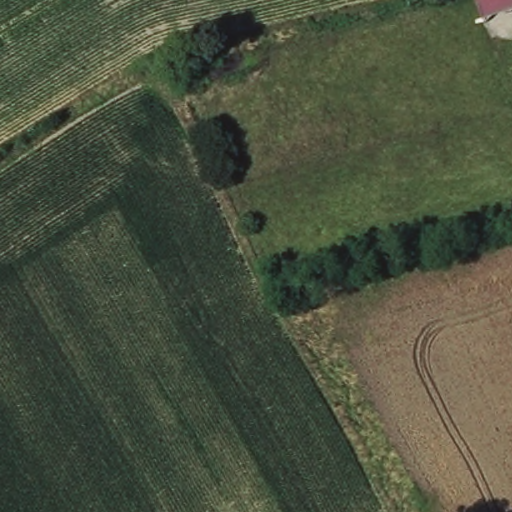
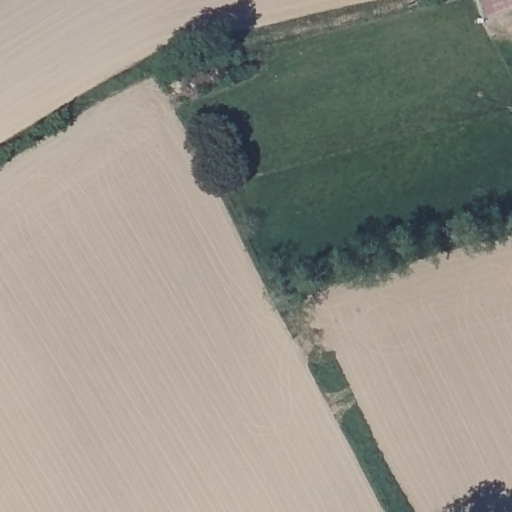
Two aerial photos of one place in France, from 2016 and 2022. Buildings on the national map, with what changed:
unchanged [(484,17),(478,0),(512,0),(512,10),(484,17)]

